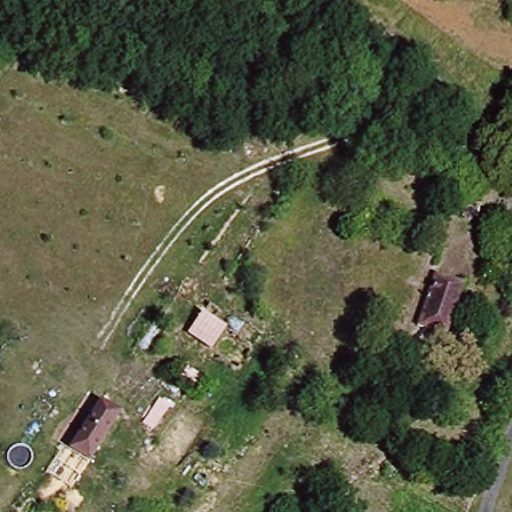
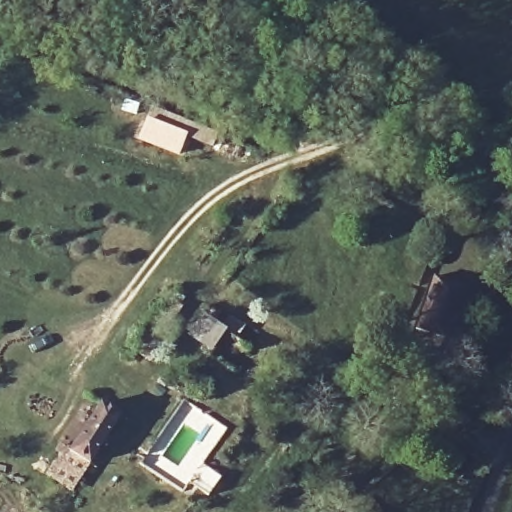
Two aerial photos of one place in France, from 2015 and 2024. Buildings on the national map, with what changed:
new [(180,157),(140,141),(153,107),(194,123),(192,127),(196,129),(192,140),(187,138),(180,157)]
unchanged [(460,288),(445,339),(416,330),(432,280),(460,288)]
unchanged [(190,328),(202,313),(222,329),(210,345),(190,328)]
unchanged [(117,422),(115,425),(84,470),(65,456),(98,409),(117,422)]

